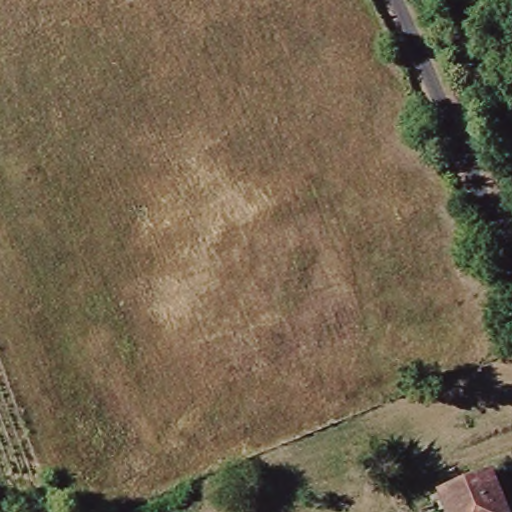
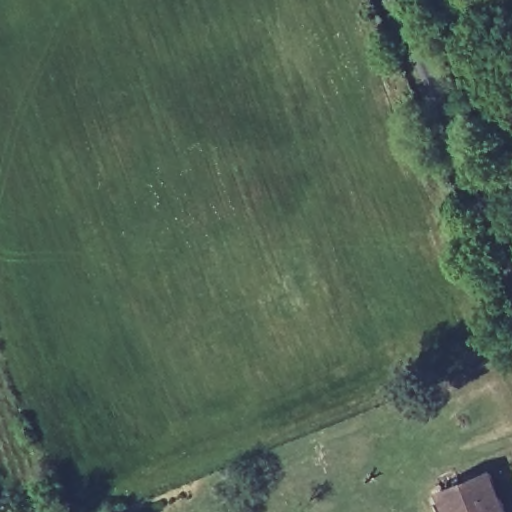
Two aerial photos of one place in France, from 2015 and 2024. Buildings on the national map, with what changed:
unchanged [(440,497),(488,475),(504,512),(447,512),(440,497)]

